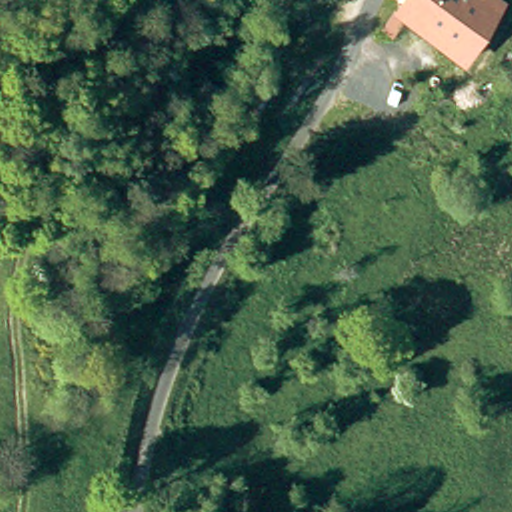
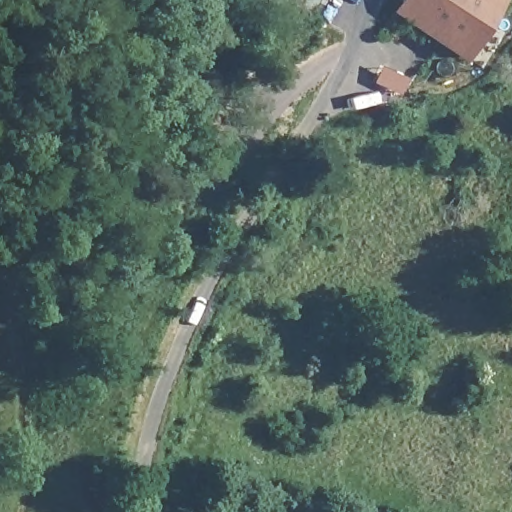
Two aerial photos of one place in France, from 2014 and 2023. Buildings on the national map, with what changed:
unchanged [(477,33),(462,54),(412,21),(393,9),(399,0),(498,0),(485,21),(477,33)]

